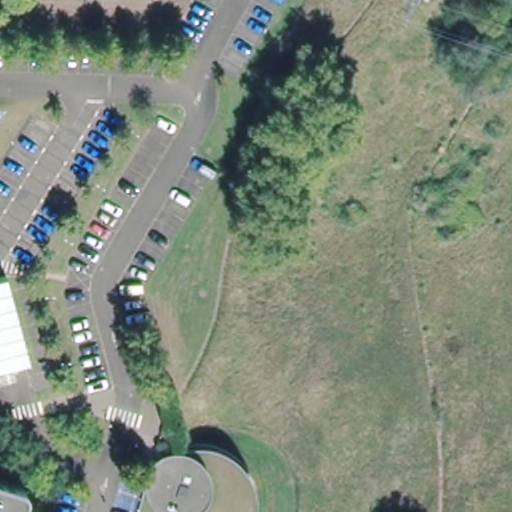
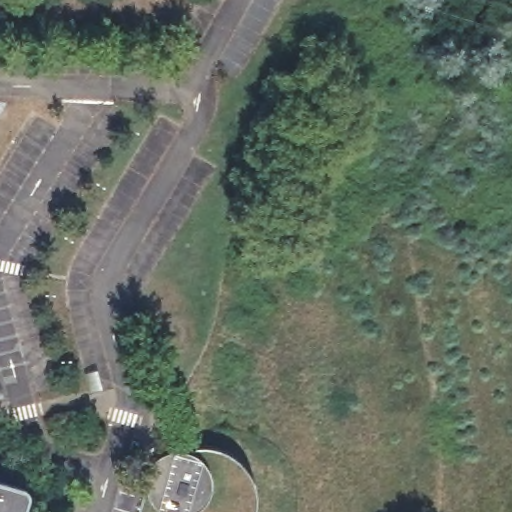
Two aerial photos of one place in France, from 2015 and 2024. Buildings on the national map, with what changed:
unchanged [(202,438),(210,437),(217,437),(222,438),(226,439),(230,441),(236,443),(240,446),(243,449),(247,453),(250,457),(253,463),(256,471),(257,478),(257,482),(257,486),(256,492),(254,496),(252,500),(250,504),(247,508),(244,512),(142,512),(158,456),(175,461),(180,443),(202,438)]
unchanged [(20,484),(23,486),(25,487),(26,489),(27,491),(27,494),(26,498),(22,512),(0,512),(0,479),(20,484)]

